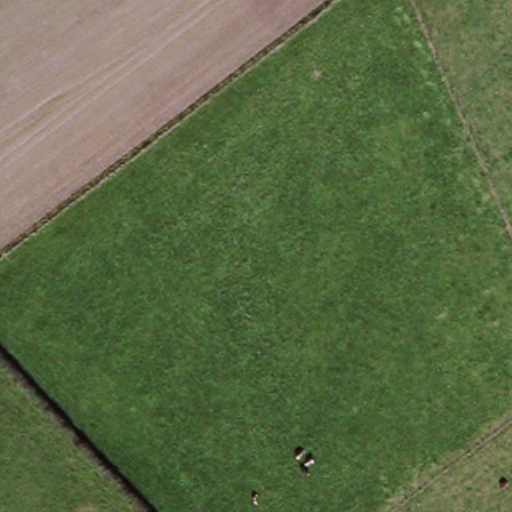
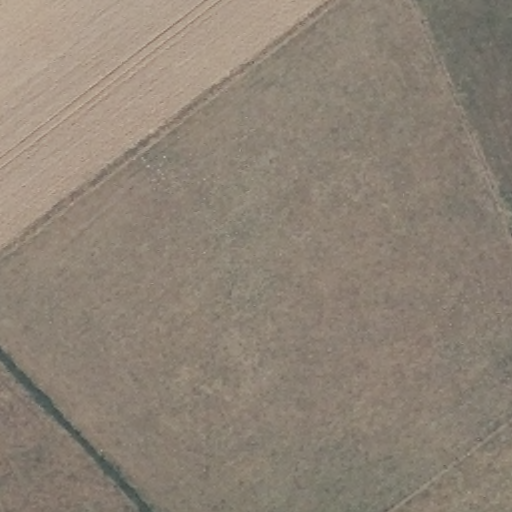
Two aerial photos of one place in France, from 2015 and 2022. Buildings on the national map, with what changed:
[]

